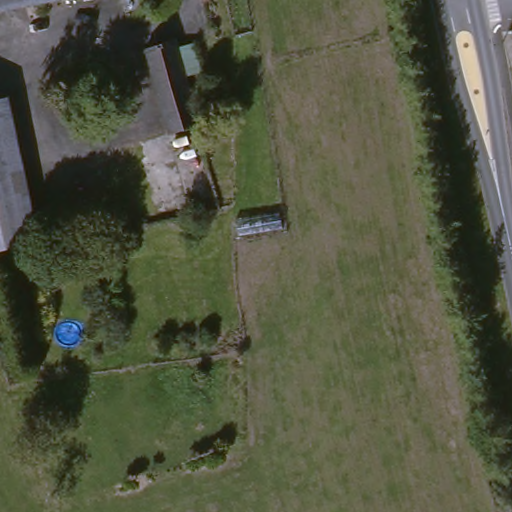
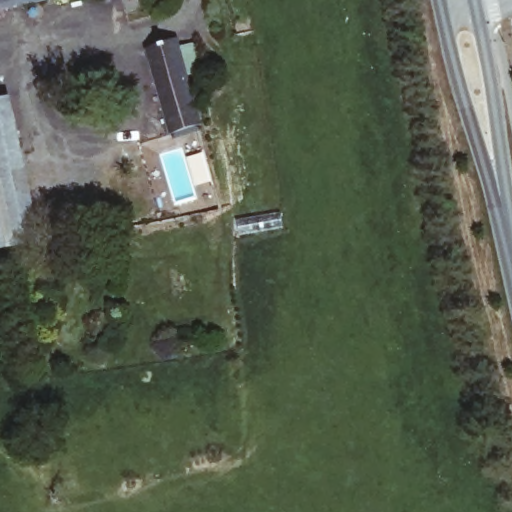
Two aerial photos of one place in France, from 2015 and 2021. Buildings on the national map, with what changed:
unchanged [(0,0),(40,0),(0,8),(0,0)]
unchanged [(150,47),(183,38),(186,47),(199,44),(206,69),(193,72),(202,122),(171,131),(150,47)]
unchanged [(36,237),(0,244),(0,98),(7,97),(36,237)]

